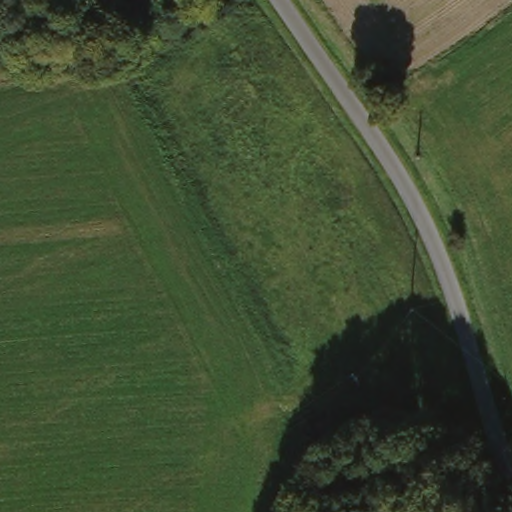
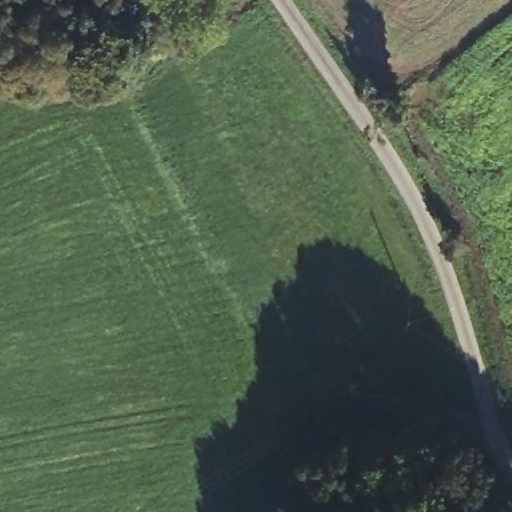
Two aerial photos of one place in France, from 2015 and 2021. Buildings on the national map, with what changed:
[]

